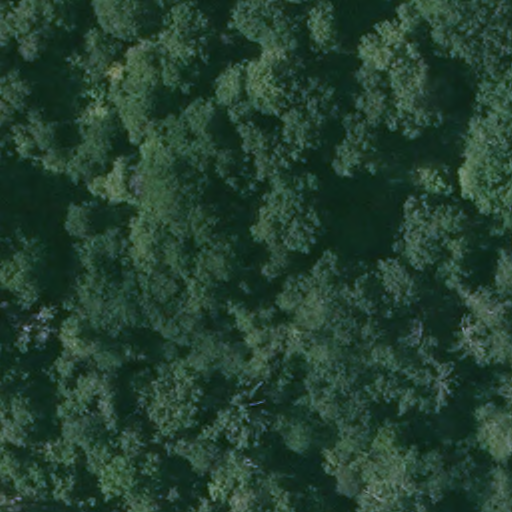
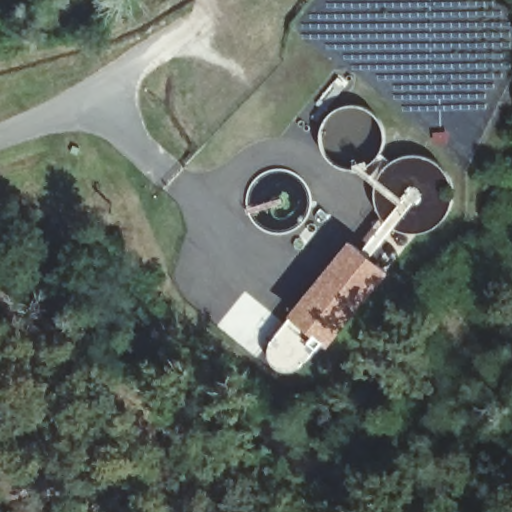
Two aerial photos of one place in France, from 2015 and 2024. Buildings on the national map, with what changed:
new [(316,329),(299,314),(357,244),(389,270),(324,349),(310,338),(316,329)]
new [(316,329),(310,338),(316,343),(300,364),(294,367),(284,369),(276,366),(272,361),(270,352),(271,343),(276,336),(296,312),(299,314),(316,329)]

